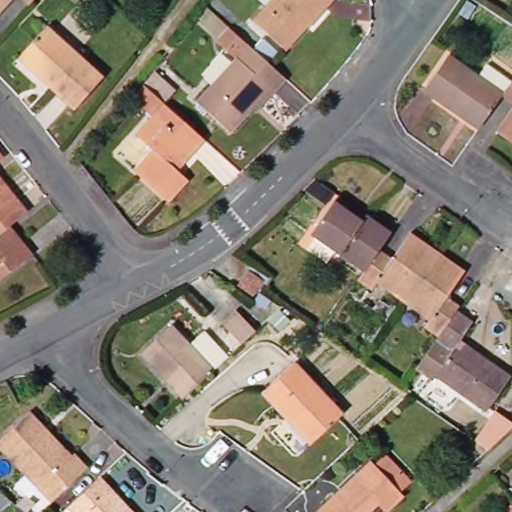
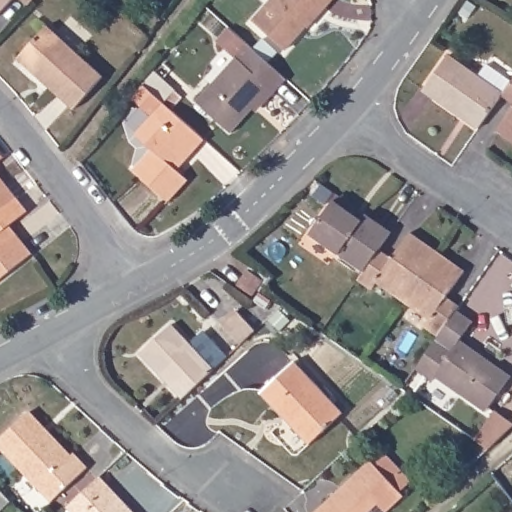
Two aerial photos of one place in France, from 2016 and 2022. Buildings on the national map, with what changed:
unchanged [(0,14),(0,0),(12,0),(0,14)]
unchanged [(29,5),(24,0),(34,0),(29,5)]
unchanged [(285,50),(253,21),(272,0),(330,0),(324,6),(307,25),(285,50)]
unchanged [(20,56),(47,26),(103,77),(74,110),(49,86),(18,58),(20,56)]
unchanged [(230,133),(196,102),(235,58),(216,41),(229,28),(253,50),(263,39),(278,52),(268,63),(286,79),(273,92),(256,112),(252,109),(230,133)]
unchanged [(442,55),(473,76),(481,64),(506,81),(504,85),(497,95),(491,102),(473,128),(418,90),(442,55)]
unchanged [(509,104),(497,95),(504,85),(506,81),(508,79),(512,74),(512,145),(491,130),(509,104)]
unchanged [(152,149),(135,134),(152,116),(135,100),(145,86),(204,140),(177,170),(188,180),(168,202),(134,170),(152,149)]
unchanged [(0,161),(0,154),(3,158),(0,161)]
unchanged [(0,213),(0,178),(17,199),(0,213)]
unchanged [(334,201),(338,195),(366,214),(391,232),(379,250),(363,272),(310,234),(334,201)]
unchanged [(27,211),(9,226),(32,254),(0,280),(0,213),(17,199),(27,211)]
unchanged [(377,282),(372,289),(358,280),(363,272),(379,250),(392,259),(410,233),(437,252),(403,301),(377,282)]
unchanged [(425,326),(430,319),(403,301),(437,252),(464,271),(447,297),(459,306),(456,310),(455,312),(439,335),(425,326)]
unchanged [(237,285),(248,270),(263,280),(253,296),(237,285)]
unchanged [(231,306),(250,326),(236,339),(217,319),(231,306)]
unchanged [(436,377),(433,381),(415,369),(439,335),(455,312),(456,310),(473,322),(460,340),(511,376),(486,412),(436,377)]
unchanged [(171,324),(190,344),(203,331),(227,357),(210,373),(183,399),(140,353),(171,324)]
unchanged [(310,444),(293,426),(295,425),(263,391),(294,362),(342,413),(310,444)]
unchanged [(0,434),(28,407),(70,452),(73,448),(87,463),(52,496),(0,442),(0,434)]
unchanged [(512,422),(512,427),(488,449),(475,440),(495,410),(512,422)]
unchanged [(374,464),(385,454),(410,481),(400,491),(403,494),(384,512),(317,512),(371,461),(374,464)]
unchanged [(99,477),(132,512),(73,512),(68,507),(99,477)]
unchanged [(0,509),(0,490),(10,500),(0,509)]

